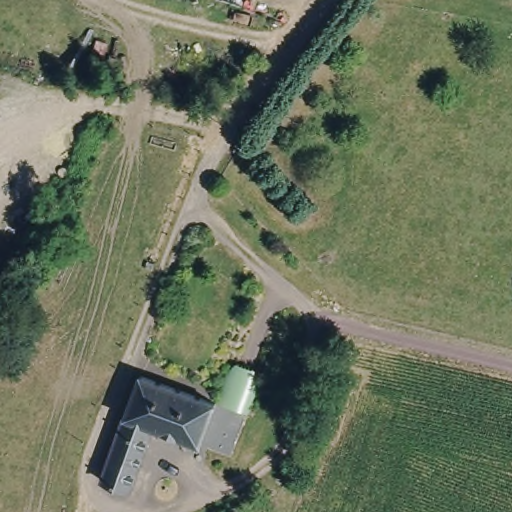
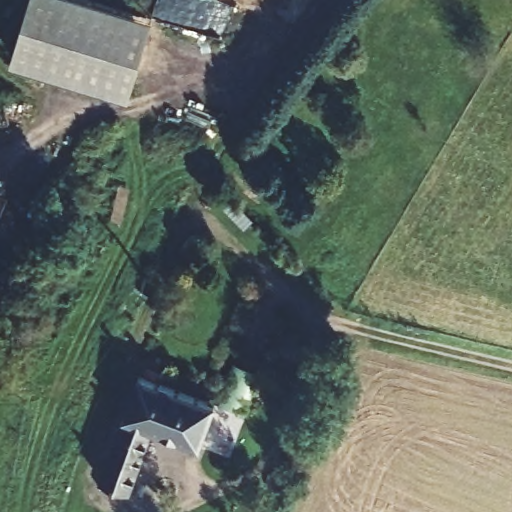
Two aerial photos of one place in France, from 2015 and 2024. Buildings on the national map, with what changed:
new [(129,97),(11,62),(29,0),(99,0),(153,17),(129,97)]
unchanged [(241,417),(225,458),(149,430),(126,492),(97,482),(118,426),(119,423),(126,405),(136,379),(241,417)]

